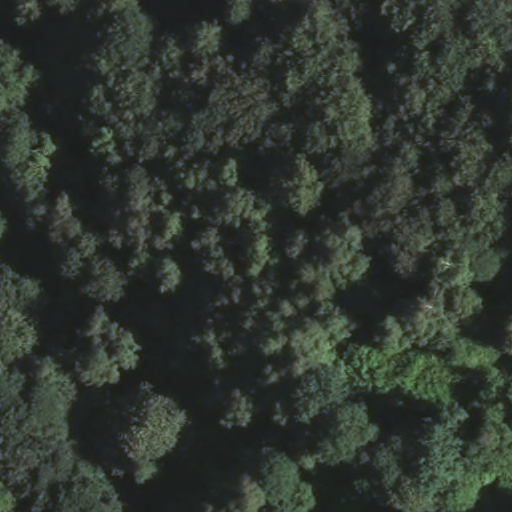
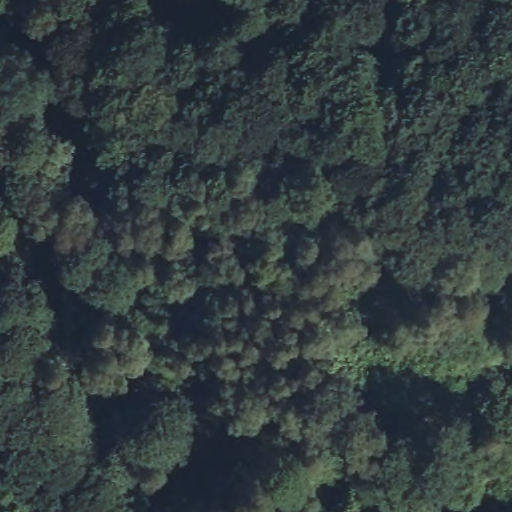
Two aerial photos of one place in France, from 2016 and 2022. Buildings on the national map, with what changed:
[]

